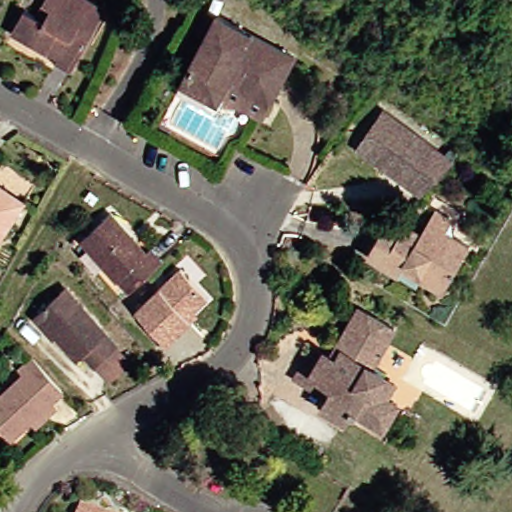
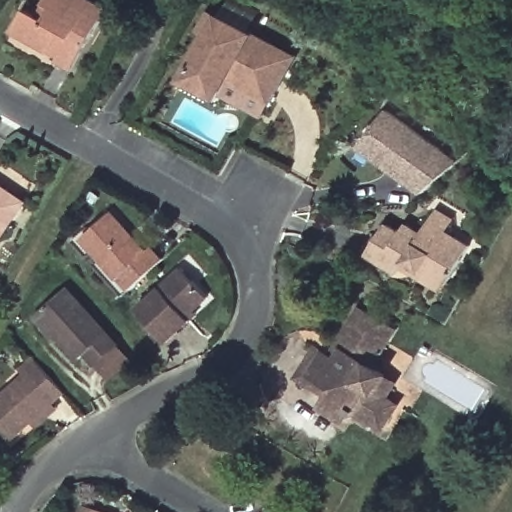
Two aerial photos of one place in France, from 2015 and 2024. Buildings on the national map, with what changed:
unchanged [(15,8),(27,15),(34,2),(35,0),(77,0),(95,9),(63,69),(46,60),(49,56),(38,50),(2,31),(15,8)]
unchanged [(266,104),(223,81),(214,99),(180,81),(213,19),(289,60),(266,104)]
unchanged [(258,118),(223,100),(217,110),(176,89),(180,81),(214,99),(223,81),(266,104),(258,118)]
unchanged [(353,145),(377,113),(394,125),(421,144),(447,164),(416,193),(401,180),(384,169),(353,145)]
unchanged [(0,229),(0,187),(20,200),(0,229)]
unchanged [(396,264),(393,269),(364,252),(383,221),(397,229),(402,221),(417,231),(426,218),(433,206),(449,217),(442,228),(465,244),(444,278),(436,289),(396,264)]
unchanged [(68,238),(83,224),(86,229),(107,211),(142,249),(149,244),(159,255),(125,285),(118,293),(68,238)]
unchanged [(151,324),(129,299),(161,270),(202,315),(174,340),(161,327),(156,329),(151,324)]
unchanged [(85,361),(80,366),(58,344),(55,347),(35,324),(41,319),(64,297),(118,352),(97,372),(85,361)]
unchanged [(308,349),(309,347),(318,353),(327,357),(333,346),(356,309),(391,329),(368,367),(382,376),(372,393),(394,406),(379,431),(348,412),(341,424),(316,409),(321,401),(289,382),(308,349)]
unchanged [(26,419),(6,437),(0,431),(0,391),(20,374),(14,367),(28,356),(59,391),(47,401),(53,407),(33,425),(26,419)]
unchanged [(81,509),(91,512),(80,512),(81,509)]

